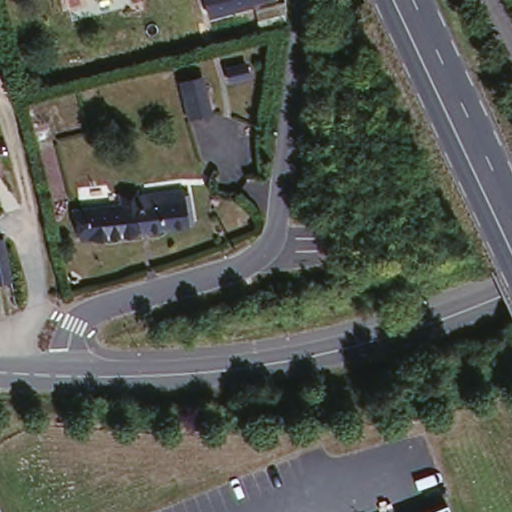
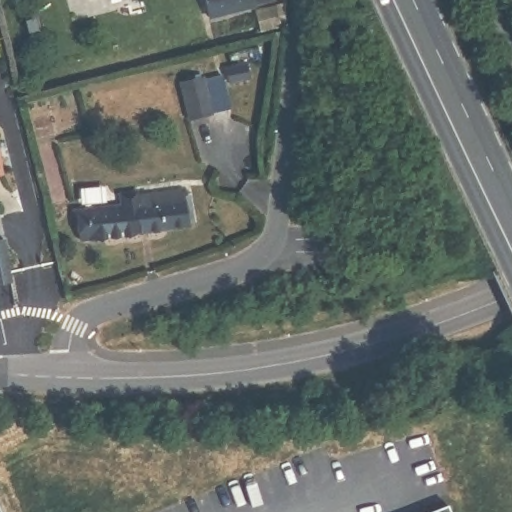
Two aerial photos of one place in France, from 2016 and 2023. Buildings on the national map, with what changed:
unchanged [(205,20),(199,0),(270,0),(271,0),(205,20)]
unchanged [(187,122),(176,83),(203,75),(210,115),(187,122)]
unchanged [(93,238),(90,222),(80,224),(79,213),(126,207),(124,194),(142,191),(142,195),(187,190),(188,204),(191,225),(93,238)]
unchanged [(7,283),(0,284),(0,247),(7,283)]
unchanged [(449,508),(450,512),(437,512),(449,508)]

